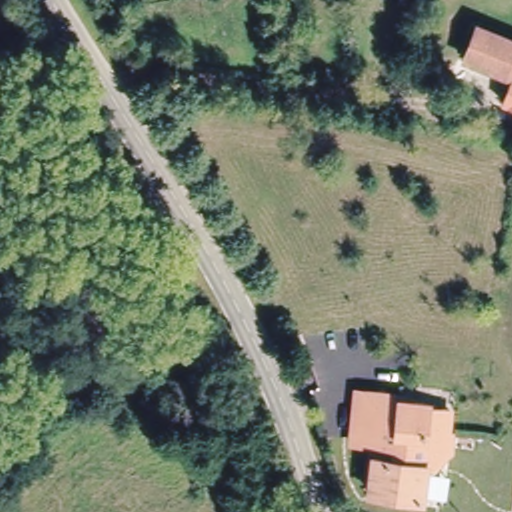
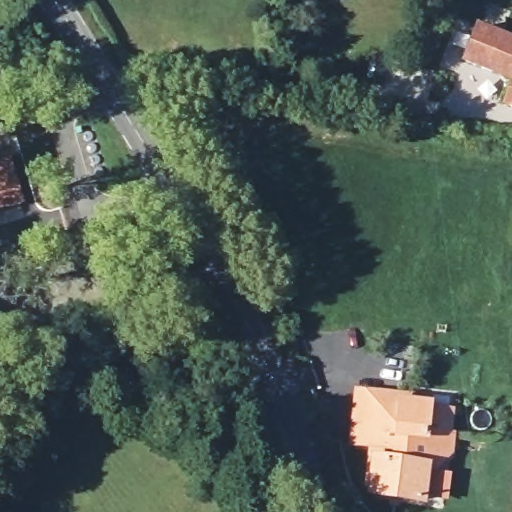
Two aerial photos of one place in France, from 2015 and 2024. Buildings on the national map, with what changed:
unchanged [(512,38),(512,76),(463,56),(477,24),(512,38)]
unchanged [(504,100),(512,80),(512,102),(504,100)]
new [(24,172),(19,173),(27,205),(0,213),(0,141),(14,137),(24,172)]
unchanged [(343,459),(351,388),(395,392),(404,392),(404,399),(421,400),(421,405),(444,407),(441,429),(448,430),(445,451),(428,466),(420,465),(415,497),(364,491),(367,460),(343,459)]

